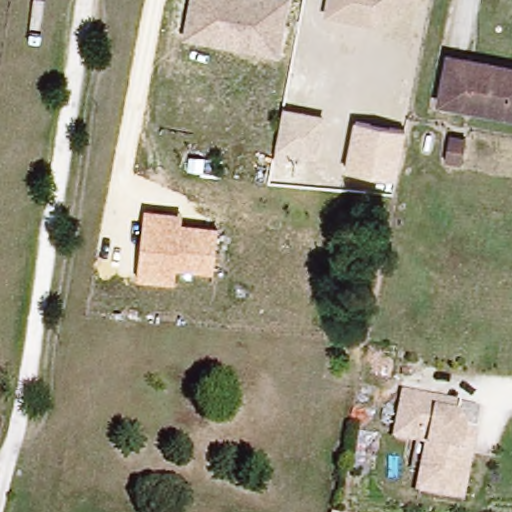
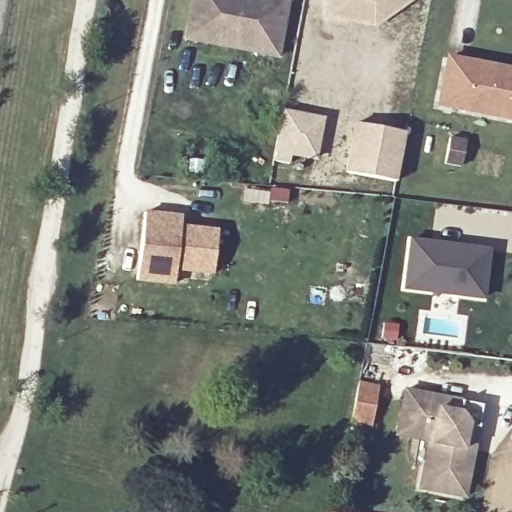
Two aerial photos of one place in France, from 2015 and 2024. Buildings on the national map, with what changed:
unchanged [(182,41),(189,0),(288,0),(279,59),(182,41)]
unchanged [(323,17),(326,0),(414,0),(373,28),(323,17)]
unchanged [(435,106),(444,59),(512,73),(512,122),(435,106)]
unchanged [(280,109),(325,117),(317,160),(292,156),(291,164),(272,159),(280,109)]
unchanged [(406,134),(396,183),(345,173),(352,123),(406,134)]
unchanged [(461,163),(446,159),(451,134),(466,137),(461,163)]
unchanged [(182,215),(180,227),(217,230),(214,274),(176,271),(175,285),(137,283),(144,211),(182,215)]
new [(410,238),(488,248),(483,295),(403,287),(410,238)]
demolished [(375,404),(355,401),(359,378),(380,382),(375,404)]
unchanged [(418,489),(429,442),(397,436),(398,429),(406,392),(441,399),(481,407),(472,452),(462,498),(418,489)]

